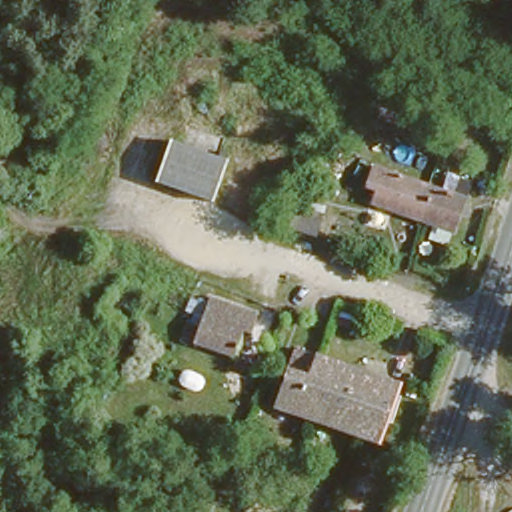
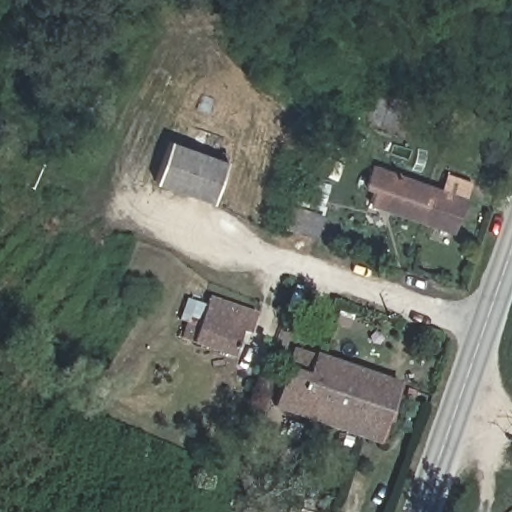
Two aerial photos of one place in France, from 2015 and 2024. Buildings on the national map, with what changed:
unchanged [(216,151),(201,191),(145,171),(159,131),(216,151)]
unchanged [(457,228),(366,197),(370,182),(358,177),(367,154),(443,180),(447,168),(473,176),(457,228)]
unchanged [(249,306),(230,349),(179,325),(191,299),(202,302),(209,287),(249,306)]
unchanged [(398,379),(379,437),(275,401),(297,343),(398,379)]

